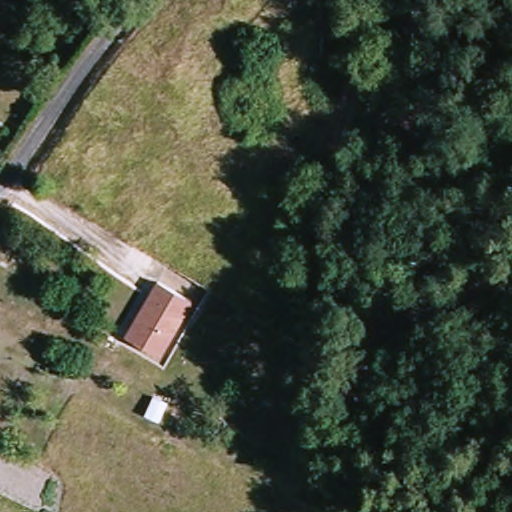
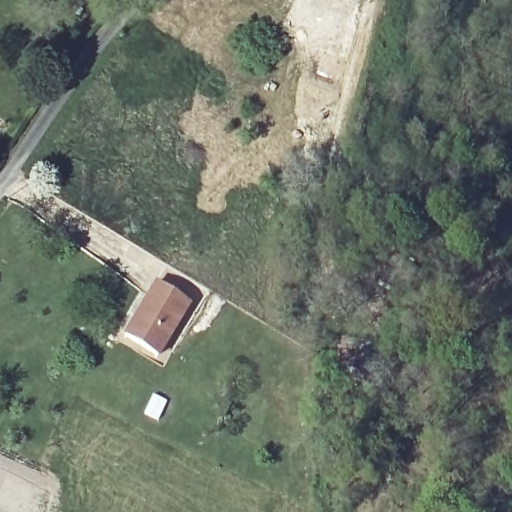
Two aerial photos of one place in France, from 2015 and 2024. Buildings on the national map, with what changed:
unchanged [(165,354),(131,336),(160,283),(193,301),(165,354)]

